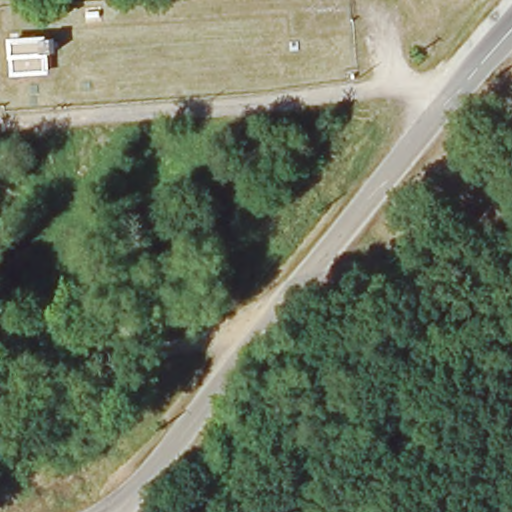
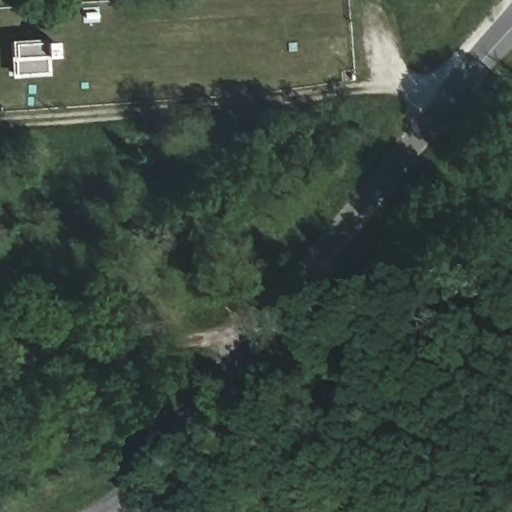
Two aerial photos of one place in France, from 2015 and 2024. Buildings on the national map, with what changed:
unchanged [(53,42),(55,60),(49,60),(47,72),(13,74),(12,42),(53,42)]

